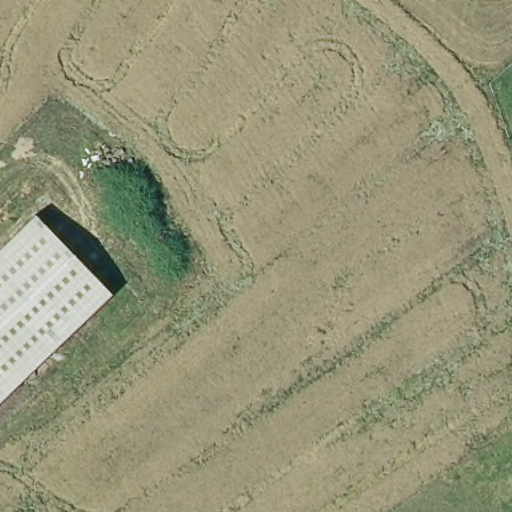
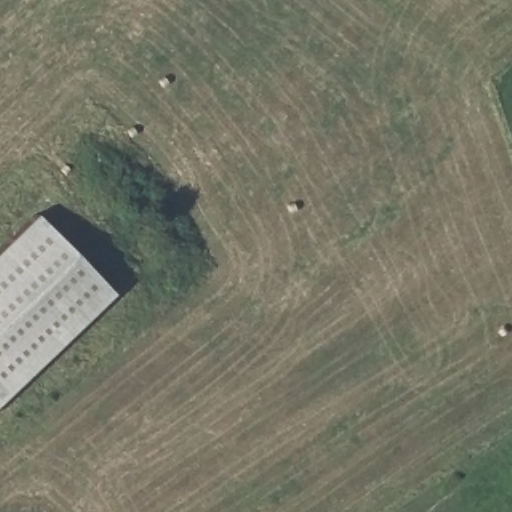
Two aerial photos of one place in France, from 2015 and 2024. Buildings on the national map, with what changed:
unchanged [(0,405),(0,249),(35,215),(110,295),(0,405)]

